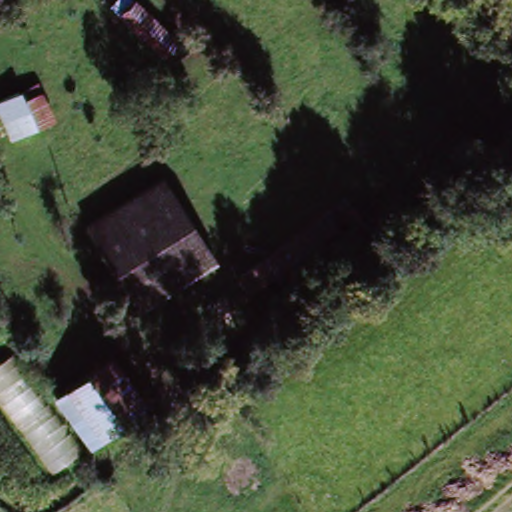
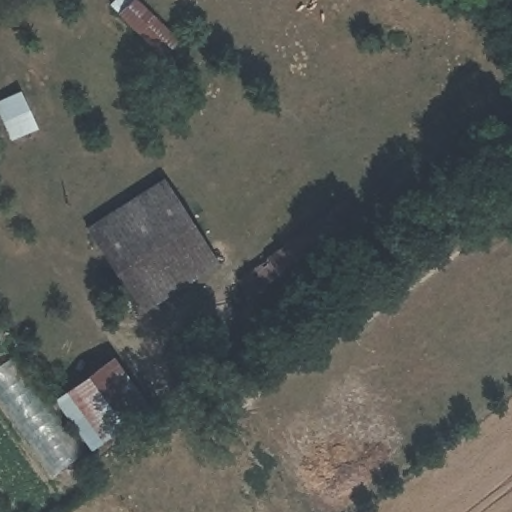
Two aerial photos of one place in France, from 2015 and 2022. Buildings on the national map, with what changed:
unchanged [(135,0),(142,0),(177,42),(156,58),(118,14),(135,0)]
unchanged [(3,41),(0,44),(0,37),(3,41)]
unchanged [(27,70),(61,123),(38,137),(5,85),(27,70)]
unchanged [(165,185),(220,263),(145,313),(90,234),(165,185)]
unchanged [(298,242),(325,278),(270,317),(242,280),(298,242)]
unchanged [(83,455),(54,475),(0,402),(0,367),(12,358),(83,455)]
unchanged [(55,403),(97,368),(137,419),(91,451),(55,403)]

